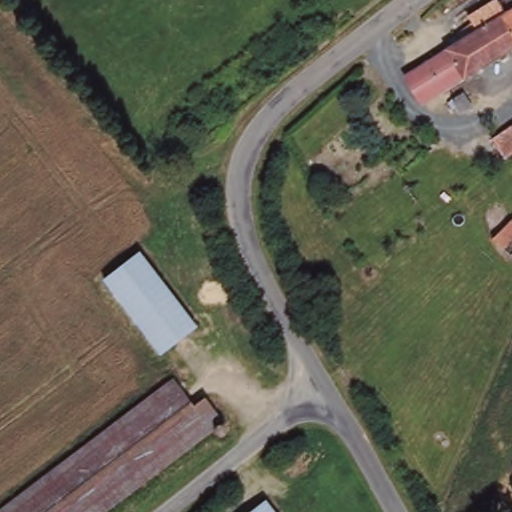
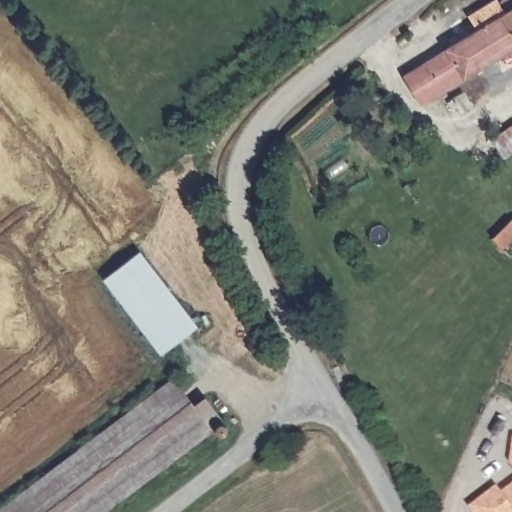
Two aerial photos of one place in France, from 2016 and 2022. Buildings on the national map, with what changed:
unchanged [(469,28),(466,21),(494,3),(497,7),(503,17),(498,22),(505,32),(512,44),(512,51),(487,67),(469,41),(460,46),(456,39),(469,28)]
unchanged [(505,32),(498,22),(503,17),(512,12),(512,44),(505,32)]
unchanged [(414,79),(412,76),(460,46),(469,41),(487,67),(452,89),(429,104),(428,102),(414,79)]
unchanged [(469,109),(459,115),(449,100),(459,95),(469,109)]
unchanged [(489,140),(512,124),(512,152),(502,159),(489,140)]
unchanged [(512,218),(512,237),(499,247),(491,239),(512,218)]
unchanged [(199,327),(156,358),(101,282),(139,251),(199,327)]
unchanged [(175,381),(179,381),(198,405),(208,398),(211,398),(221,413),(219,416),(114,499),(97,512),(9,512),(175,381)]
new [(508,463),(512,437),(512,469),(508,463)]
new [(467,508),(495,487),(499,493),(512,484),(512,512),(470,512),(467,508)]
demolished [(265,499),(274,512),(249,512),(265,499)]

